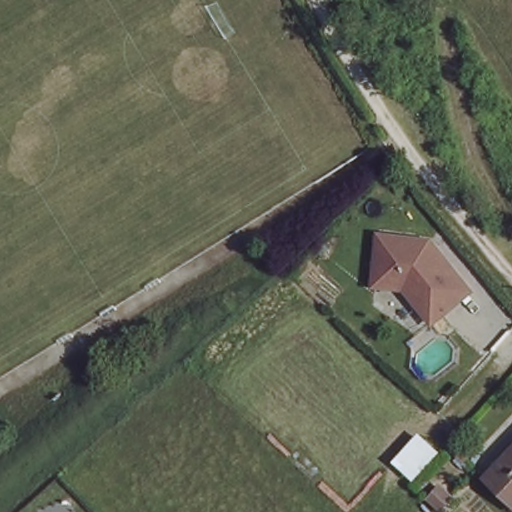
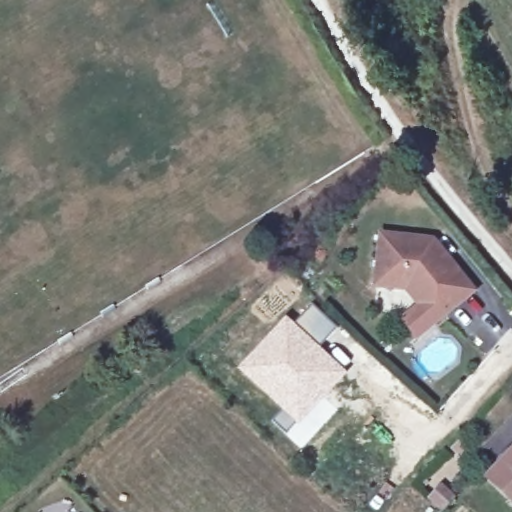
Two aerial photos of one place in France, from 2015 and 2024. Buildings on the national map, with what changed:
unchanged [(384,235),(422,239),(452,274),(459,268),(476,289),(438,320),(409,288),(378,285),(384,235)]
new [(312,304),(337,327),(320,346),(348,372),(325,397),(296,424),(295,422),(284,433),(273,420),(282,411),(238,370),(286,315),(295,322),(312,304)]
new [(295,422),(296,424),(325,397),(337,409),(300,449),(284,433),(295,422)]
unchanged [(491,475),(512,452),(512,496),(491,475)]

